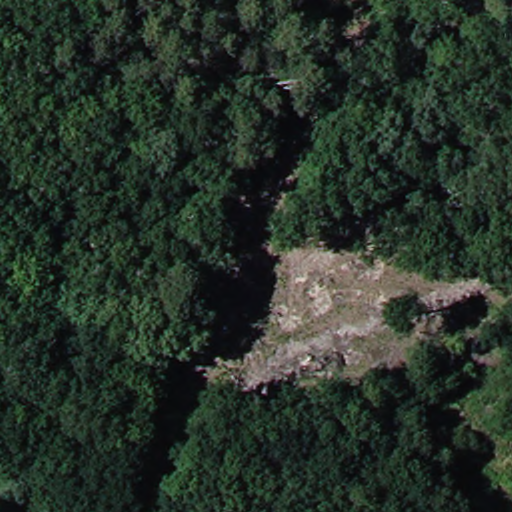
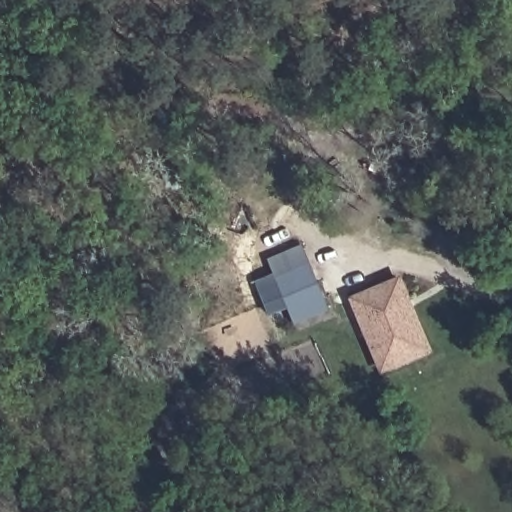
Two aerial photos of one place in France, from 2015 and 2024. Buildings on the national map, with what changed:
new [(329,310),(296,325),(269,260),(303,246),(329,310)]
new [(350,299),(401,277),(435,353),(384,375),(350,299)]

